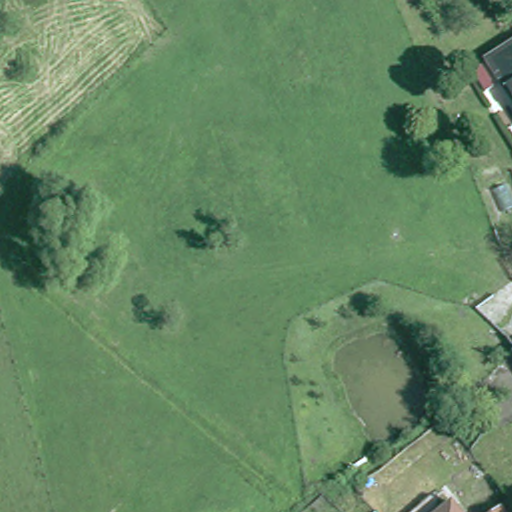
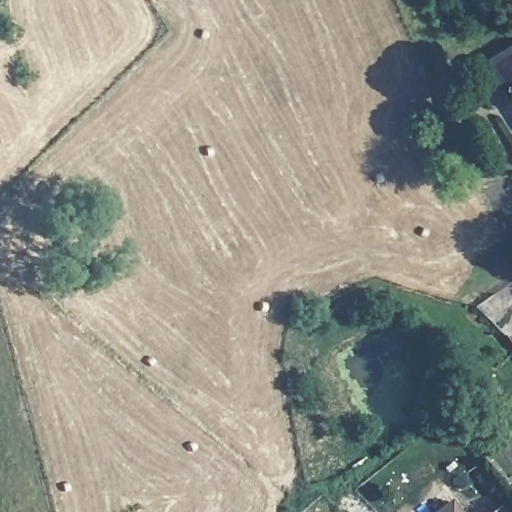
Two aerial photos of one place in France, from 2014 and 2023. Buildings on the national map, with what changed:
unchanged [(512,46),(512,100),(488,61),(512,46)]
unchanged [(461,512),(436,512),(452,500),(461,512)]
unchanged [(502,509),(504,512),(496,512),(502,509)]

